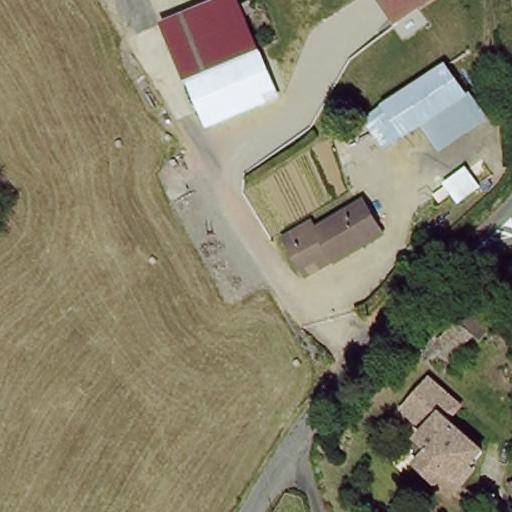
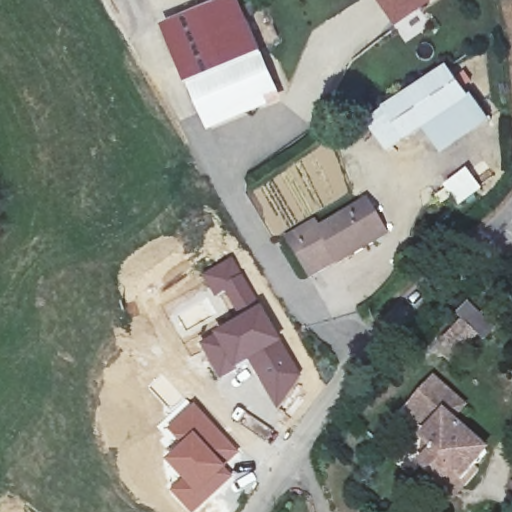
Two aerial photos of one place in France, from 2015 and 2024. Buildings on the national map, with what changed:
unchanged [(286,105),(213,137),(165,25),(229,0),(241,0),(286,105)]
unchanged [(409,29),(391,0),(454,0),(409,29)]
unchanged [(449,71),(453,69),(475,103),(427,134),(410,144),(408,142),(390,155),(368,123),(387,111),(401,102),(420,90),(449,71)]
unchanged [(475,103),(492,126),(443,156),(427,134),(475,103)]
unchanged [(285,246),(313,231),(316,236),(365,207),(386,244),(335,273),(333,269),(306,286),(285,246)]
new [(232,258),(258,304),(236,317),(222,295),(213,299),(200,277),(232,258)]
unchanged [(455,302),(484,329),(470,342),(444,315),(455,302)]
new [(261,310),(302,376),(276,412),(270,404),(248,365),(220,382),(200,346),(261,310)]
unchanged [(440,317),(452,329),(435,350),(422,339),(440,317)]
unchanged [(452,426),(440,416),(424,433),(406,413),(436,379),(470,407),(452,426)]
new [(240,454),(224,468),(233,478),(196,512),(187,512),(171,494),(181,483),(168,470),(181,451),(160,426),(186,400),(240,454)]
unchanged [(435,486),(418,471),(431,456),(416,442),(424,433),(440,416),(452,426),(483,452),(460,478),(445,496),(435,486)]

